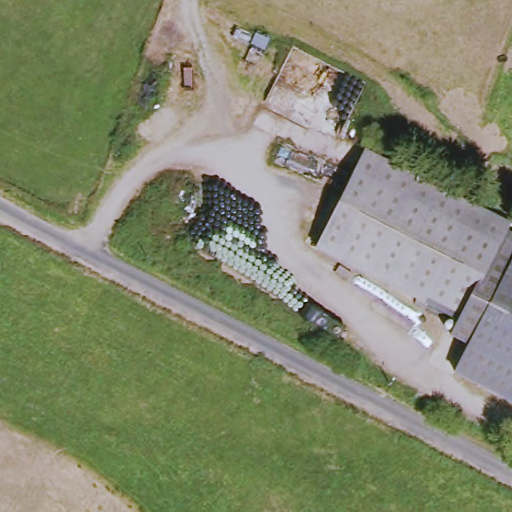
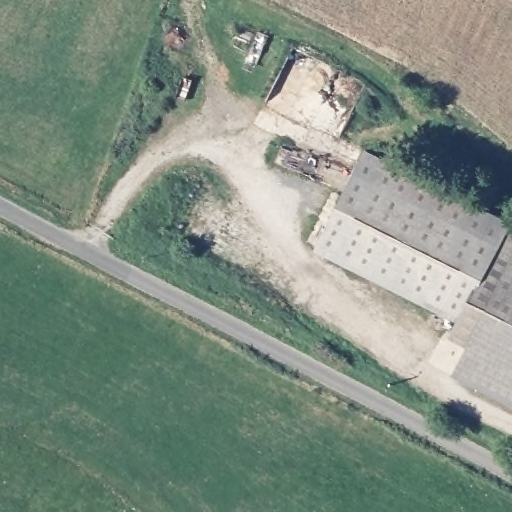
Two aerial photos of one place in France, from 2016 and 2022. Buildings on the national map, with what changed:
unchanged [(452,325),(310,249),(359,154),(503,227),(497,238),(512,246),(512,371),(468,349),(447,338),(452,325)]
unchanged [(453,376),(468,349),(512,371),(512,406),(453,376)]

